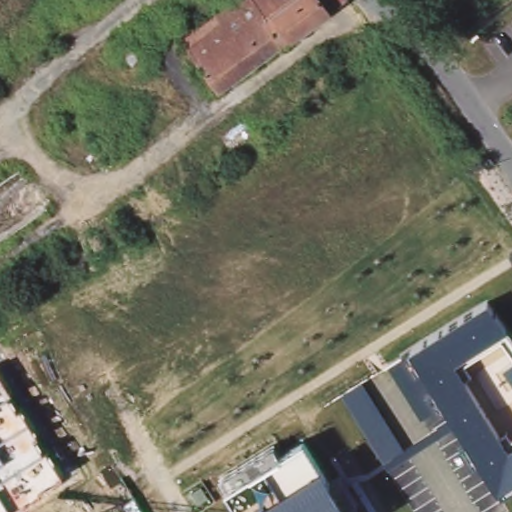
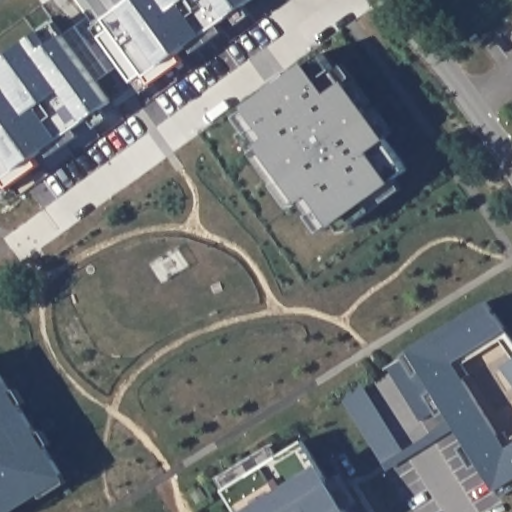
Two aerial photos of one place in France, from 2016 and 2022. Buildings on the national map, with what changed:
new [(96,25),(78,0),(250,0),(231,15),(206,33),(178,52),(183,59),(152,82),(145,73),(135,78),(103,35),(96,25)]
demolished [(253,0),(284,43),(219,90),(183,40),(237,0),(253,0)]
demolished [(253,0),(343,0),(284,43),(253,0)]
new [(87,117),(60,138),(35,155),(42,164),(10,186),(3,175),(0,177),(0,59),(56,19),(64,34),(112,100),(87,117)]
new [(336,222),(323,231),(300,200),(303,197),(264,145),(261,147),(248,129),(238,115),(271,91),(266,85),(284,72),(288,79),(323,54),(335,71),(343,65),(393,133),(385,139),(407,170),(395,179),(402,189),(343,231),(336,222)]
new [(248,129),(261,147),(264,145),(303,197),(300,200),(292,205),(240,135),(248,129)]
demolished [(20,170),(47,208),(0,242),(0,184),(20,170)]
unchanged [(445,410),(423,423),(387,365),(409,350),(487,302),(507,328),(454,360),(508,446),(512,444),(512,481),(496,491),(445,410)]
unchanged [(4,512),(0,512),(0,372),(63,474),(4,512)]
unchanged [(386,467),(341,397),(363,383),(407,452),(386,467)]
unchanged [(226,490),(219,477),(272,444),(278,455),(303,439),(321,468),(349,512),(238,512),(226,490)]

